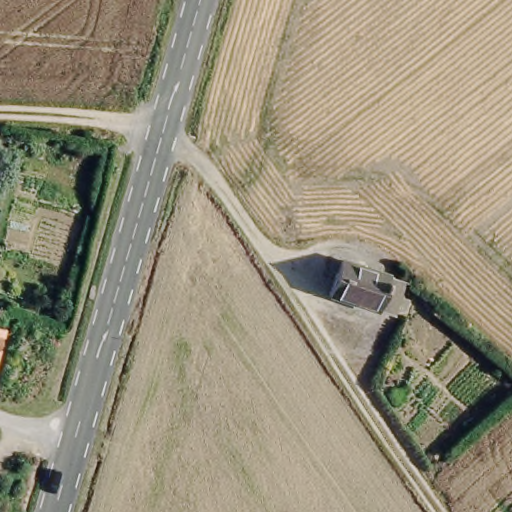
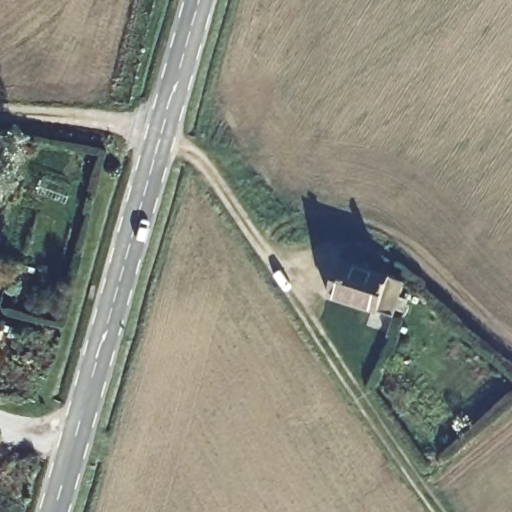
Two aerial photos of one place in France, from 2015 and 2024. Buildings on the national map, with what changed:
unchanged [(398,312),(390,309),(388,315),(326,292),(338,256),(402,279),(396,294),(404,297),(398,312)]
unchanged [(0,329),(0,327),(1,328),(0,329)]

